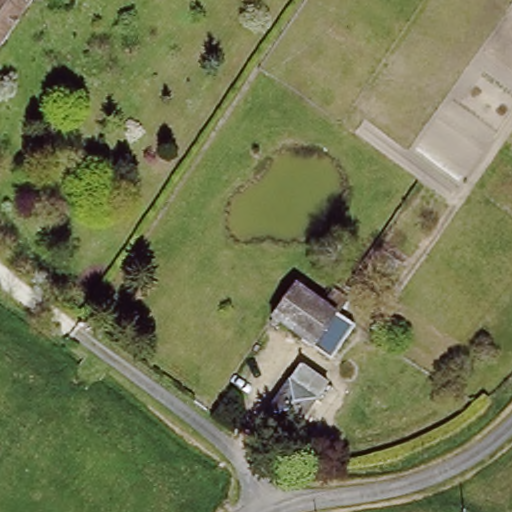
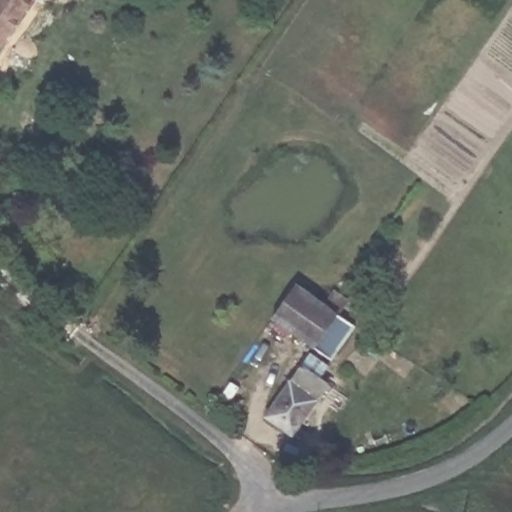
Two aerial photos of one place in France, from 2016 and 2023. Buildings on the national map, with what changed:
unchanged [(0,52),(0,0),(36,0),(0,52)]
unchanged [(340,295),(352,301),(342,316),(360,327),(337,360),(278,319),(284,310),(300,286),(332,308),(340,295)]
unchanged [(306,368),(332,386),(297,435),(272,418),(306,368)]

